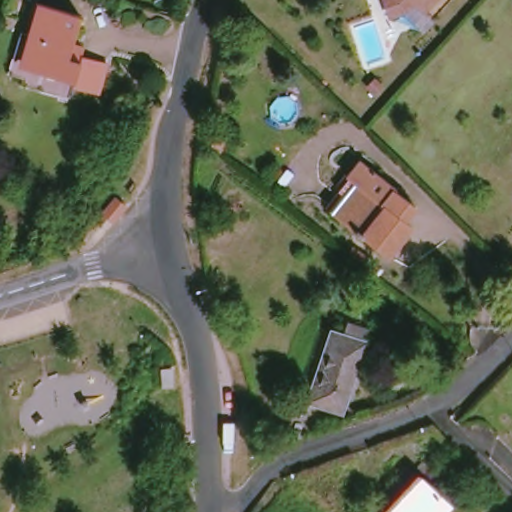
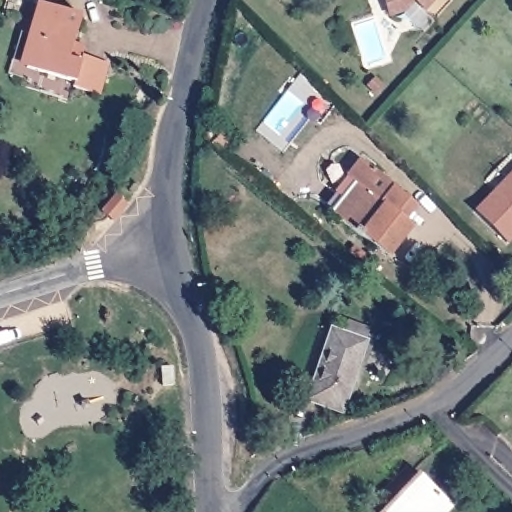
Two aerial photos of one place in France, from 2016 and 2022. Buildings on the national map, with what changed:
unchanged [(390,13),(385,0),(410,0),(406,5),(390,13)]
unchanged [(417,0),(428,0),(422,6),(417,0)]
unchanged [(63,49),(100,59),(93,93),(67,86),(68,80),(21,68),(29,36),(25,35),(32,5),(72,15),(63,49)]
unchanged [(394,188),(392,191),(413,207),(404,222),(410,226),(387,256),(325,209),(349,179),(345,177),(358,161),(394,188)]
new [(512,172),(512,243),(509,246),(474,212),(512,172)]
unchanged [(350,417),(317,405),(340,336),(373,348),(350,417)]
unchanged [(176,371),(177,389),(167,390),(165,371),(176,371)]
unchanged [(372,507),(405,468),(453,512),(376,512),(372,507)]

